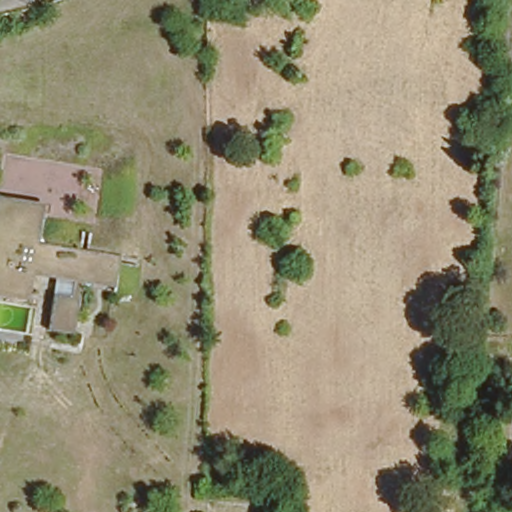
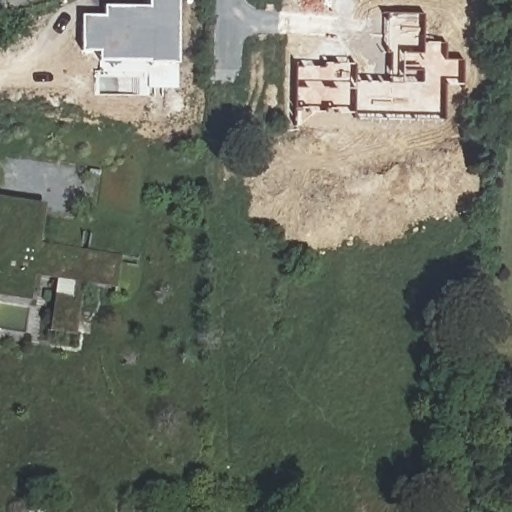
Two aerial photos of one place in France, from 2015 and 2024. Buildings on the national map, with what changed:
new [(149,60),(100,61),(99,50),(82,50),(81,14),(104,15),(105,4),(150,5),(149,0),(179,0),(179,63),(150,62),(149,60)]
new [(297,66),(325,67),(325,62),(357,64),(357,81),(389,82),(391,53),(385,53),(387,13),(426,13),(425,42),(446,43),(446,58),(463,59),(463,85),(445,85),(443,121),(352,119),(353,113),(339,113),(338,109),(327,109),(327,113),(311,113),(311,108),(296,108),(297,66)]
unchanged [(44,204),(40,242),(121,251),(117,285),(86,282),(80,335),(51,332),(55,290),(71,292),(72,282),(33,277),(30,303),(0,300),(0,199),(44,204)]

